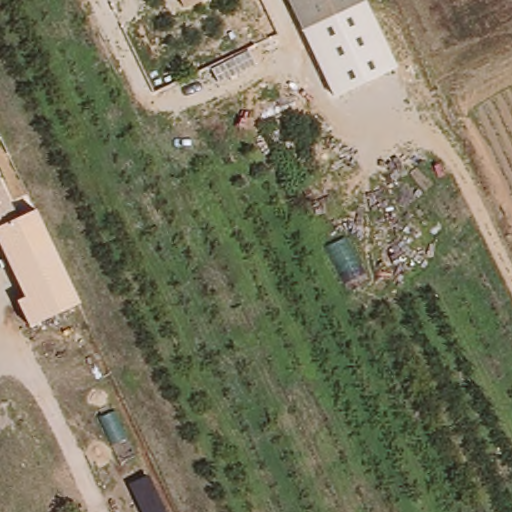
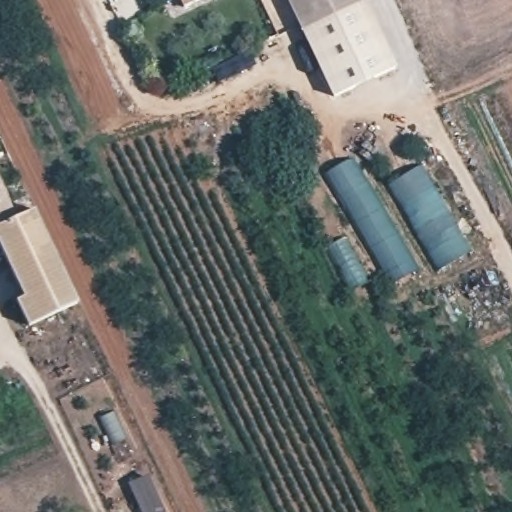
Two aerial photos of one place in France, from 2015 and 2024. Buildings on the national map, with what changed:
unchanged [(180,0),(202,0),(185,8),(180,0)]
unchanged [(291,0),(349,0),(303,24),(291,0)]
unchanged [(335,91),(303,24),(349,0),(368,0),(399,65),(335,91)]
new [(418,268),(392,284),(325,172),(353,157),(418,268)]
new [(470,251),(441,270),(389,183),(419,165),(470,251)]
unchanged [(36,208),(80,302),(28,326),(15,300),(23,296),(0,247),(0,180),(17,216),(36,208)]
unchanged [(129,480),(150,471),(168,512),(145,512),(129,480)]

